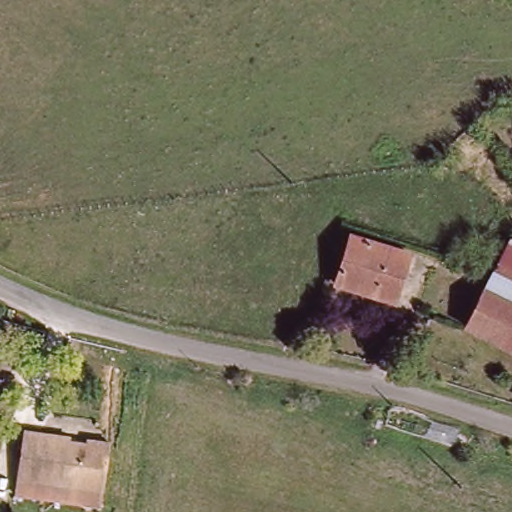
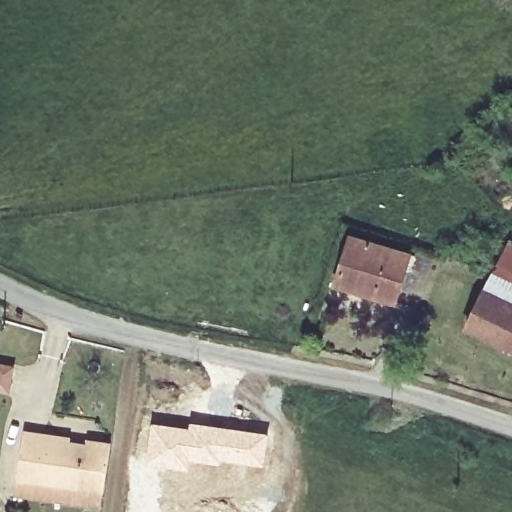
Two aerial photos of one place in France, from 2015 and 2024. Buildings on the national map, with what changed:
unchanged [(352,243),(408,257),(398,304),(341,290),(352,243)]
unchanged [(480,336),(493,296),(497,288),(511,254),(512,254),(512,351),(480,336)]
new [(150,420),(188,425),(189,420),(268,432),(263,465),(220,459),(220,462),(190,460),(188,466),(144,460),(150,420)]
unchanged [(15,474),(29,425),(52,432),(51,436),(96,451),(98,445),(115,450),(101,498),(73,490),(69,502),(11,485),(15,474)]

